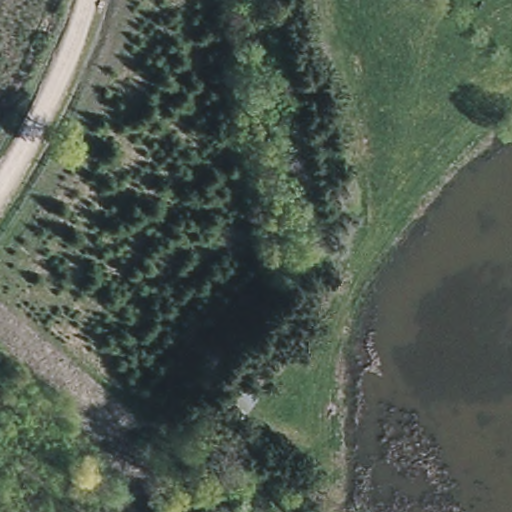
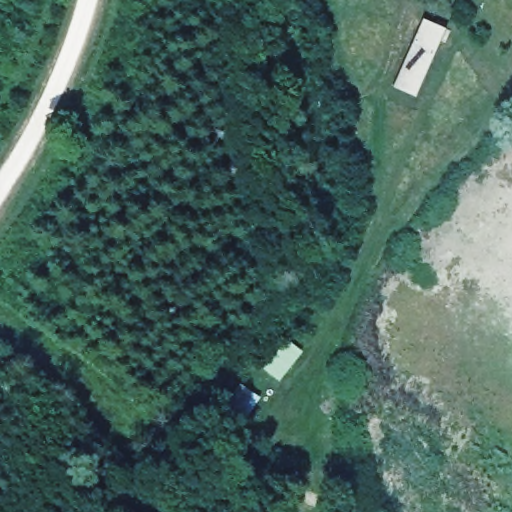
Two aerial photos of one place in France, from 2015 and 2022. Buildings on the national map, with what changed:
new [(415,96),(392,87),(423,19),(447,28),(415,96)]

